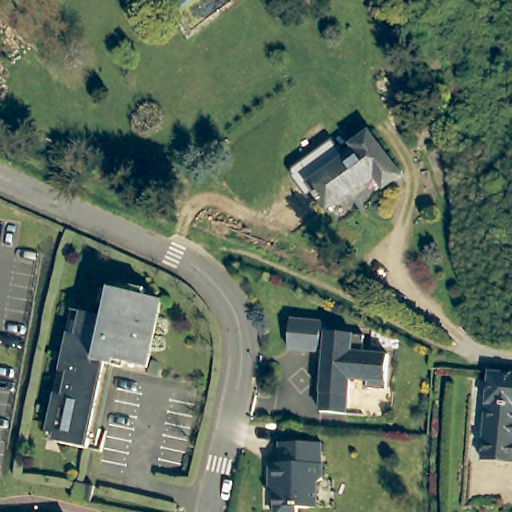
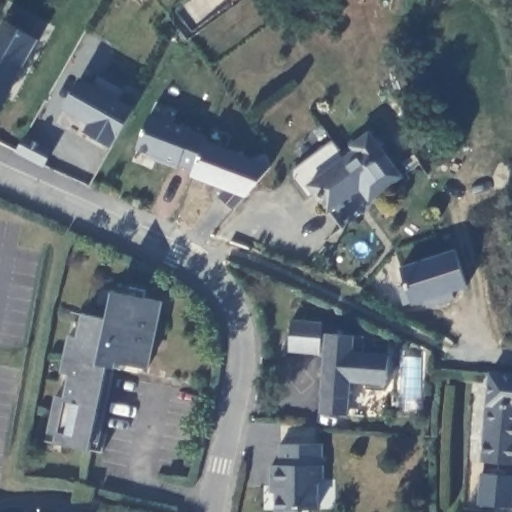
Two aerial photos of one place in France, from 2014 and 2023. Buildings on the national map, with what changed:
new [(0,108),(0,29),(6,18),(40,37),(0,108)]
new [(95,85),(101,77),(123,91),(119,99),(135,108),(111,151),(81,132),(87,122),(62,109),(80,77),(95,85)]
new [(192,131),(208,137),(195,171),(178,165),(177,167),(147,156),(148,153),(136,149),(151,114),(192,131)]
unchanged [(352,149),(368,137),(401,180),(383,192),(374,181),(328,215),(309,189),(296,172),(332,145),(345,162),(356,154),(352,149)]
new [(453,292),(455,300),(427,308),(425,299),(411,303),(403,306),(398,289),(406,286),(401,266),(456,247),(467,287),(453,292)]
unchanged [(49,426),(57,392),(62,369),(69,337),(74,318),(82,320),(84,311),(107,316),(110,301),(113,287),(119,288),(121,282),(147,287),(145,296),(162,299),(147,366),(127,362),(126,367),(116,365),(96,448),(90,447),(55,440),(47,437),(49,426)]
unchanged [(324,324),(323,335),(366,338),(364,356),(390,357),(387,392),(367,391),(368,383),(352,382),(350,397),(348,417),(322,415),(323,396),(327,355),(291,351),(293,322),(324,324)]
unchanged [(490,371),(512,373),(512,463),(482,460),(490,371)]
unchanged [(324,478),(319,485),(319,510),(302,511),(301,512),(278,512),(278,487),(275,487),(275,463),(283,463),(283,444),(325,445),(324,478)]
unchanged [(95,485),(92,501),(74,497),(77,481),(95,485)]

